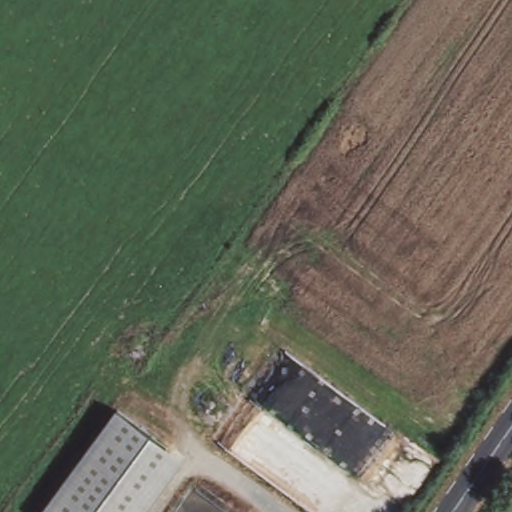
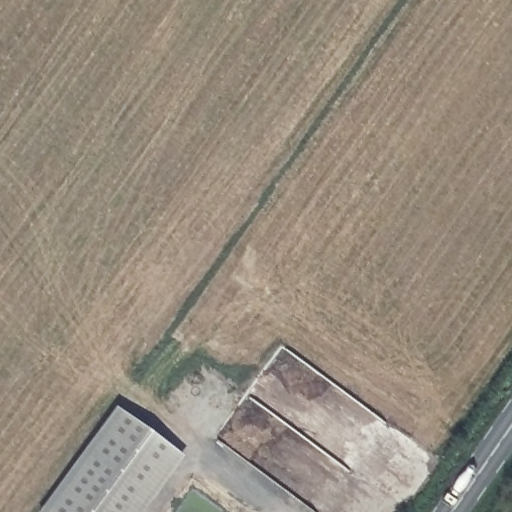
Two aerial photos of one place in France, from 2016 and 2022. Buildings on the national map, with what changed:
unchanged [(182,457),(143,512),(40,512),(115,408),(182,457)]

